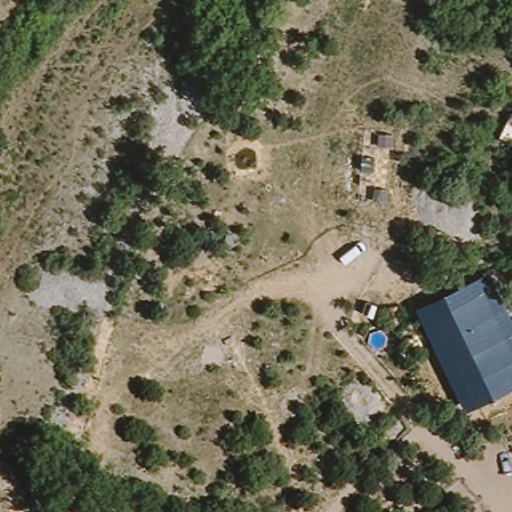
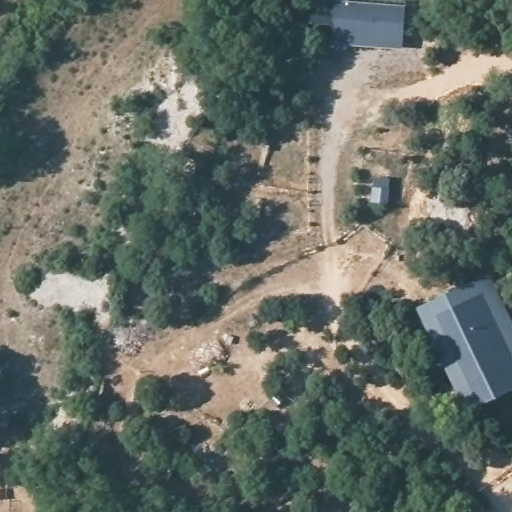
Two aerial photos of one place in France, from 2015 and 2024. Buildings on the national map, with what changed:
new [(406,6),(404,49),(333,43),(335,0),(406,6)]
unchanged [(512,318),(512,391),(463,413),(416,304),(490,270),(512,318)]

